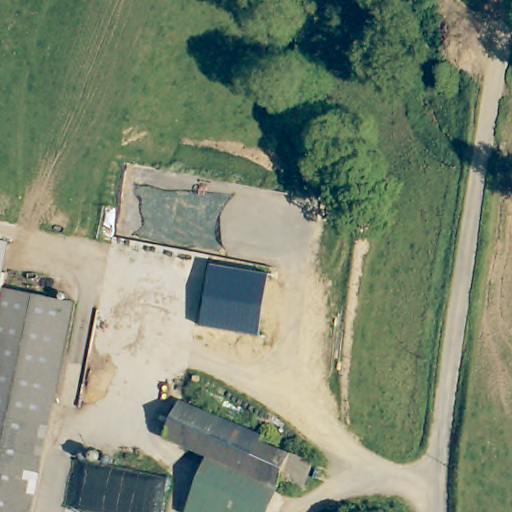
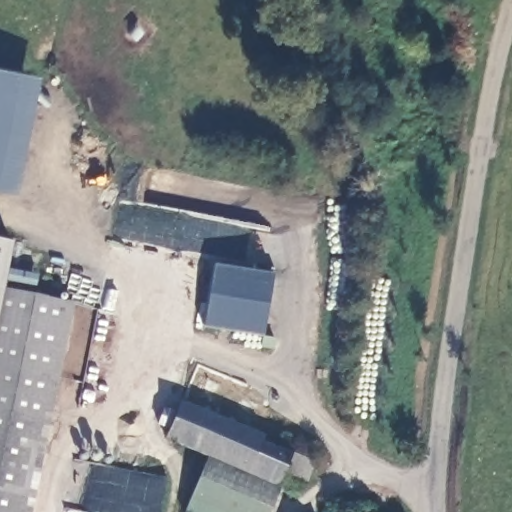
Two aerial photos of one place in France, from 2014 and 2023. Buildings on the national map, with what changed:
new [(15,192),(0,189),(0,66),(40,75),(15,192)]
unchanged [(440,117),(428,116),(433,67),(444,69),(440,117)]
unchanged [(358,160),(350,147),(357,144),(365,156),(358,160)]
unchanged [(0,275),(0,236),(8,237),(0,275)]
unchanged [(264,337),(204,326),(214,264),(273,275),(264,337)]
unchanged [(45,420),(0,411),(0,285),(69,300),(45,420)]
unchanged [(296,484),(280,477),(275,487),(204,456),(162,438),(178,400),(261,436),(259,441),(289,455),(306,462),(296,484)]
unchanged [(27,512),(0,512),(0,411),(45,420),(27,512)]
unchanged [(218,512),(186,497),(204,456),(275,487),(265,512),(218,512)]
unchanged [(218,512),(180,512),(186,497),(218,512)]

